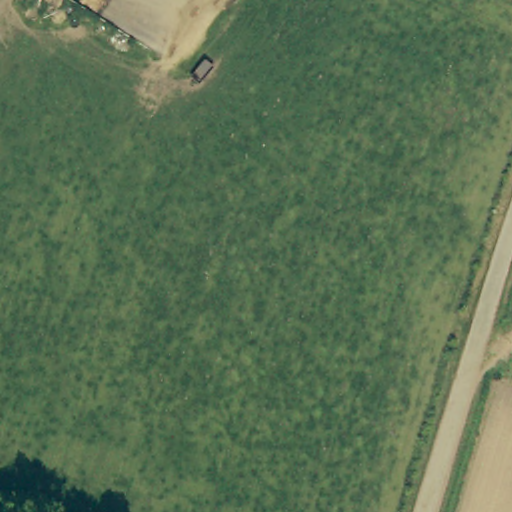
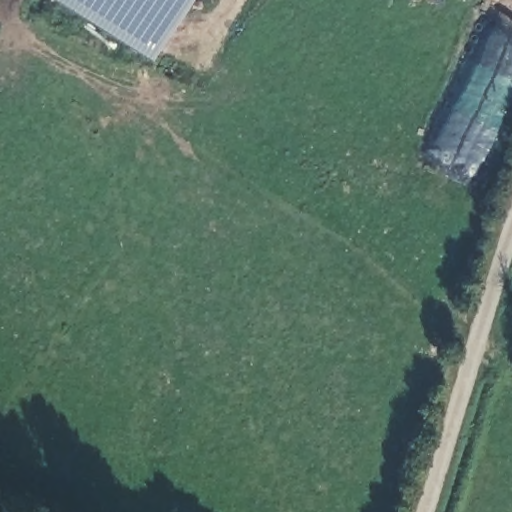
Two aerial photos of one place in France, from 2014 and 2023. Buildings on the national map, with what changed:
new [(152,59),(55,0),(190,0),(152,59)]

